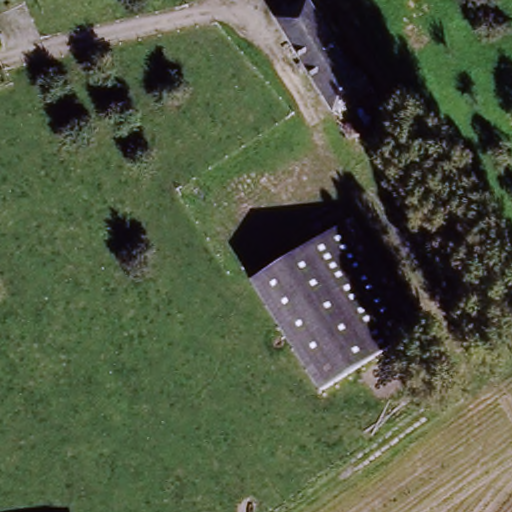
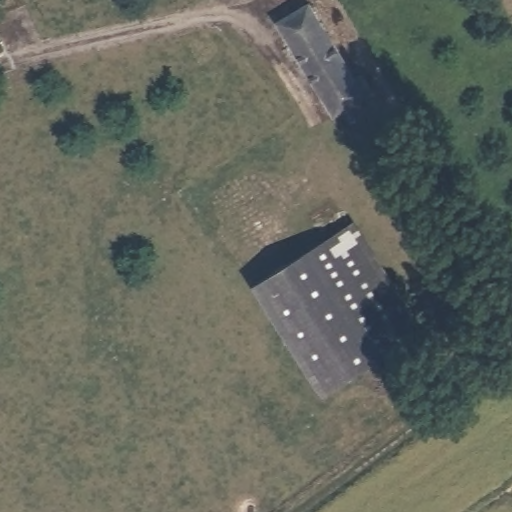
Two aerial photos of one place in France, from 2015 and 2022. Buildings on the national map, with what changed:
unchanged [(363,90),(328,111),(280,33),(303,20),(334,71),(347,64),(363,90)]
unchanged [(344,225),(419,330),(320,391),(248,280),(344,225)]

